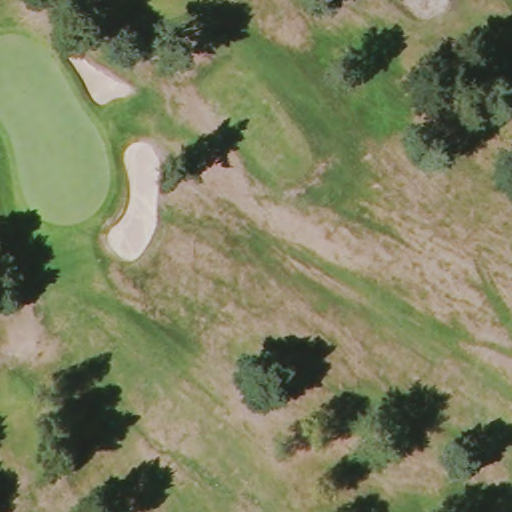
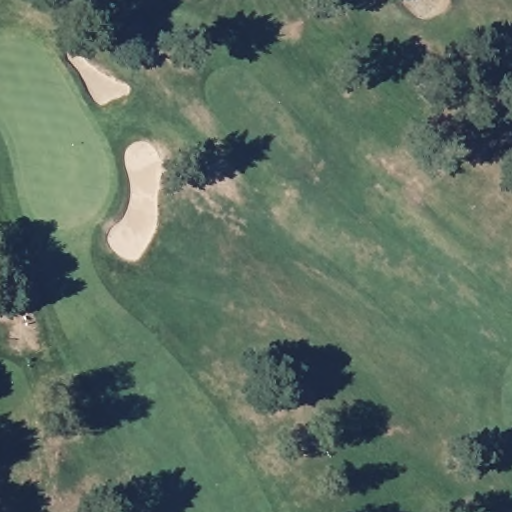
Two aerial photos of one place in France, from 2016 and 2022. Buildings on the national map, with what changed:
[]

